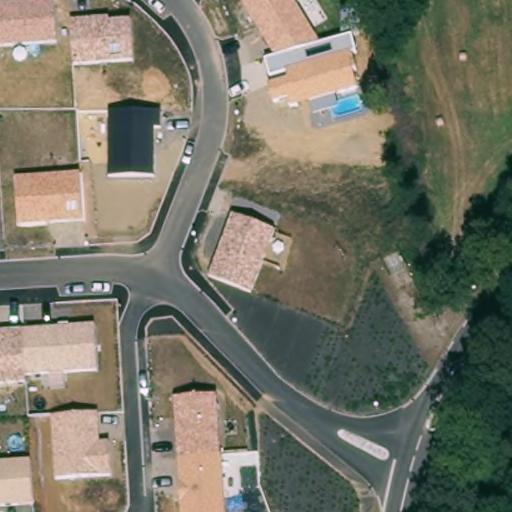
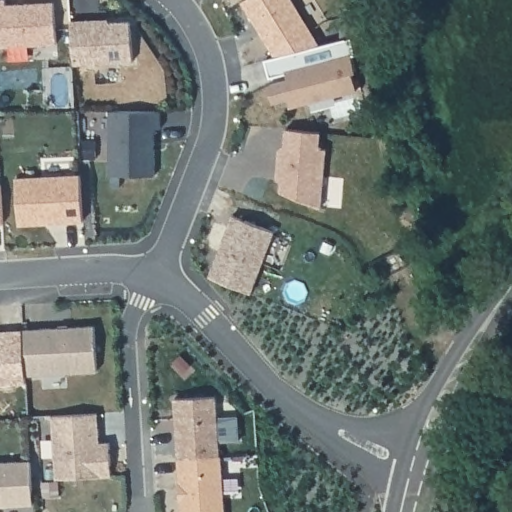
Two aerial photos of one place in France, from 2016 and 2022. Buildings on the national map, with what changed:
unchanged [(55,4),(58,44),(0,46),(0,0),(9,0),(9,5),(55,4)]
unchanged [(294,0),(321,44),(341,39),(342,10),(360,11),(359,37),(353,37),(358,55),(351,57),(360,89),(336,95),(339,110),(315,116),(312,104),(290,109),(288,101),(274,104),(264,59),(276,57),(243,2),(246,0),(294,0)]
unchanged [(71,20),(113,19),(113,23),(133,23),(134,62),(74,65),(71,20)]
unchanged [(111,110),(162,113),(163,129),(155,129),(154,175),(111,175),(111,110)]
new [(279,149),(285,144),(286,127),(321,130),(320,146),(327,147),(321,207),(280,191),(281,179),(276,179),(277,168),(279,149)]
unchanged [(16,179),(81,177),(83,223),(19,227),(16,179)]
unchanged [(233,216),(275,233),(252,294),(210,277),(233,216)]
unchanged [(98,371),(26,374),(26,384),(0,385),(0,332),(95,327),(98,371)]
unchanged [(175,399),(218,397),(224,512),(182,512),(175,399)]
unchanged [(51,418),(97,415),(100,444),(110,444),(111,475),(56,479),(51,418)]
new [(475,437),(495,443),(486,469),(467,462),(475,437)]
unchanged [(33,504),(0,506),(0,463),(32,462),(33,504)]

